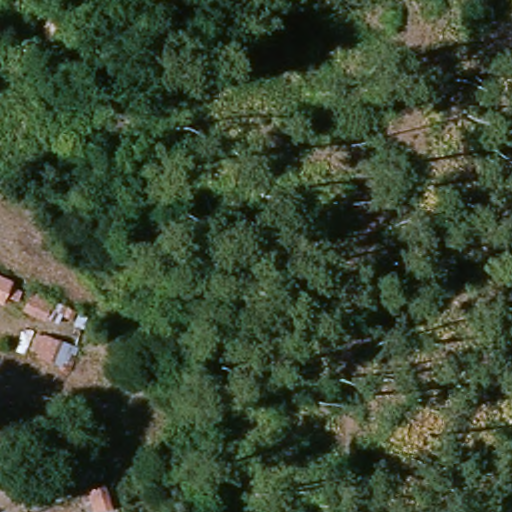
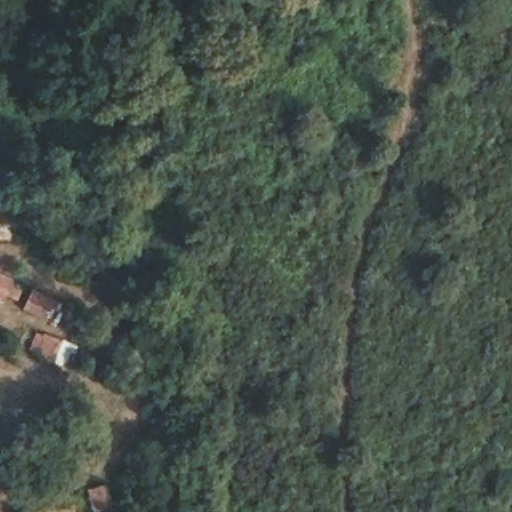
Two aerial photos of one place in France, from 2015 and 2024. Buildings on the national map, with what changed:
[]

